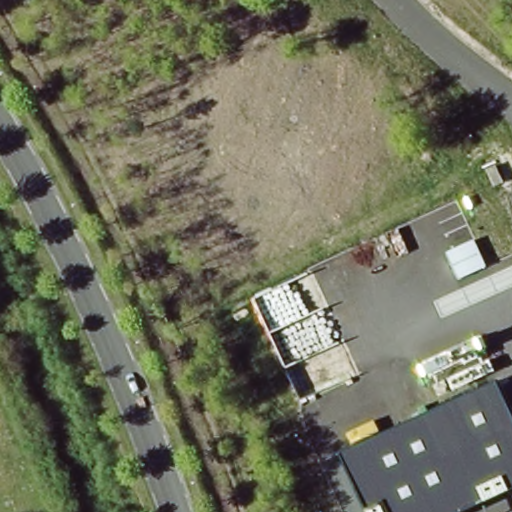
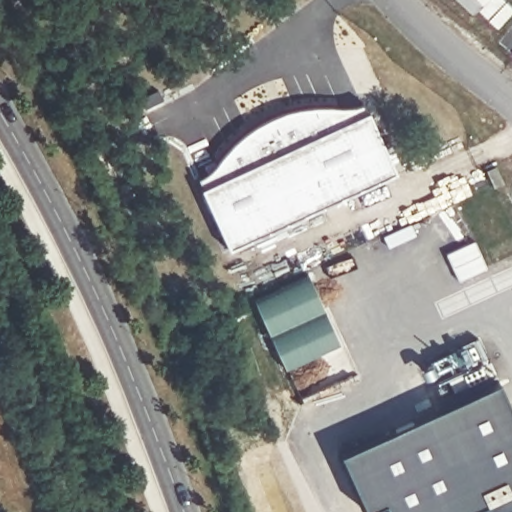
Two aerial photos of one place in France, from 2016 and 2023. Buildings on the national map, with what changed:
new [(198,177),(210,169),(217,160),(227,147),(242,132),(260,120),(275,113),(294,107),(316,104),(338,105),(347,105),(357,104),(363,101),(368,111),(369,111),(397,171),(230,249),(202,187),(203,187),(198,177)]
new [(312,271),(328,306),(273,330),(257,296),(312,271)]
new [(328,306),(344,340),(288,365),(273,330),(328,306)]
unchanged [(512,489),(462,512),(393,512),(388,501),(367,510),(340,453),(497,381),(512,410),(512,489)]

